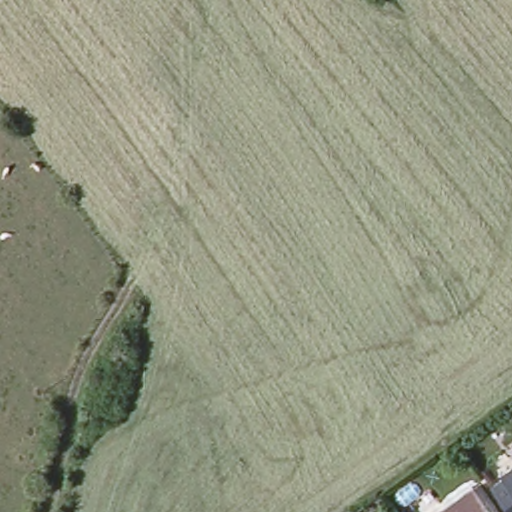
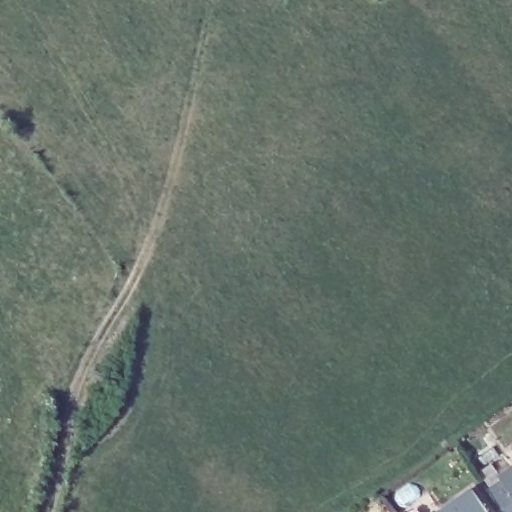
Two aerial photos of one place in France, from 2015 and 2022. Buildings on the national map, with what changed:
unchanged [(499,478),(512,469),(509,466),(512,463),(512,497),(499,478)]
unchanged [(492,512),(435,512),(473,485),(492,512)]

